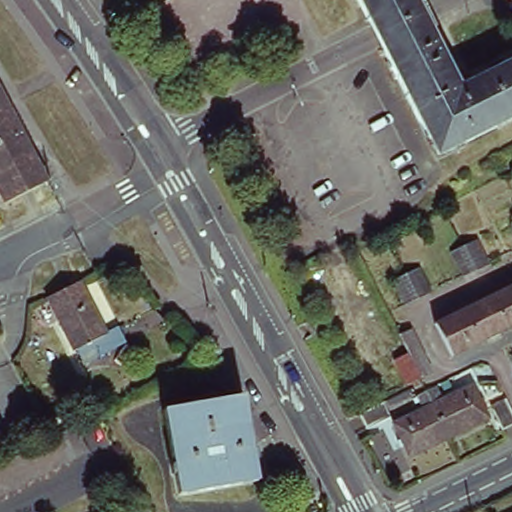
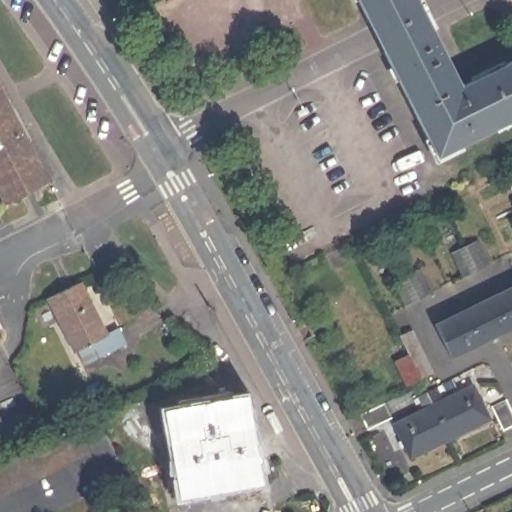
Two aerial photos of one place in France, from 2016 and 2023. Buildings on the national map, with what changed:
unchanged [(460,82),(512,57),(512,119),(437,157),(375,37),(356,0),(419,0),(425,12),(460,82)]
unchanged [(0,191),(0,90),(48,181),(6,202),(0,191)]
unchanged [(511,222),(512,222),(512,225),(511,222)]
unchanged [(452,251),(477,239),(490,266),(465,278),(452,251)]
unchanged [(395,279),(420,267),(433,293),(408,305),(395,279)]
unchanged [(100,330),(110,324),(117,337),(81,356),(75,344),(70,347),(42,293),(72,277),(100,330)]
unchanged [(447,356),(430,324),(512,285),(512,324),(447,356)]
unchanged [(0,336),(0,332),(2,335),(0,336)]
unchanged [(383,347),(407,335),(417,354),(429,378),(404,390),(392,366),(383,347)]
unchanged [(487,423),(410,461),(403,449),(400,451),(397,445),(400,443),(392,429),(422,414),(412,396),(417,394),(419,399),(434,392),(441,405),(471,390),(478,405),(482,403),(486,409),(481,412),(487,423)]
unchanged [(385,395),(393,410),(367,422),(359,407),(385,395)]
unchanged [(243,398),(257,481),(180,494),(164,411),(190,407),(189,403),(217,398),(219,402),(243,398)]
unchanged [(506,406),(512,421),(512,431),(502,436),(491,413),(506,406)]
unchanged [(87,445),(0,490),(0,459),(75,421),(87,445)]

